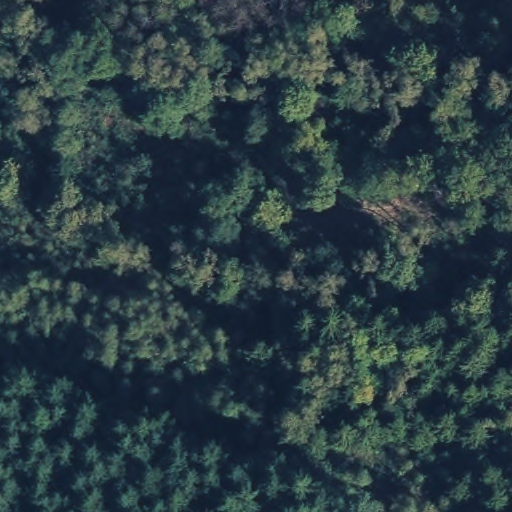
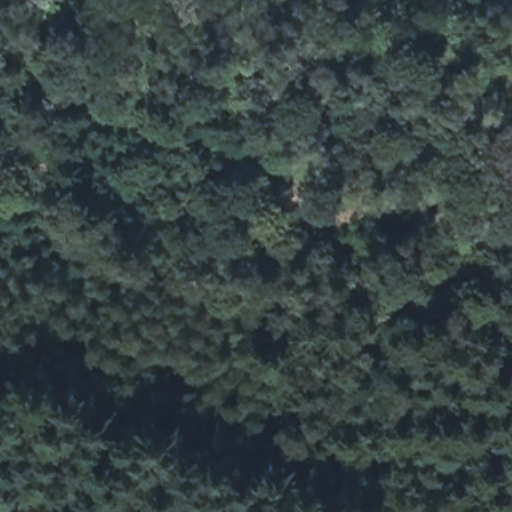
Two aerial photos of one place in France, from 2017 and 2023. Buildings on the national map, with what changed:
[]

